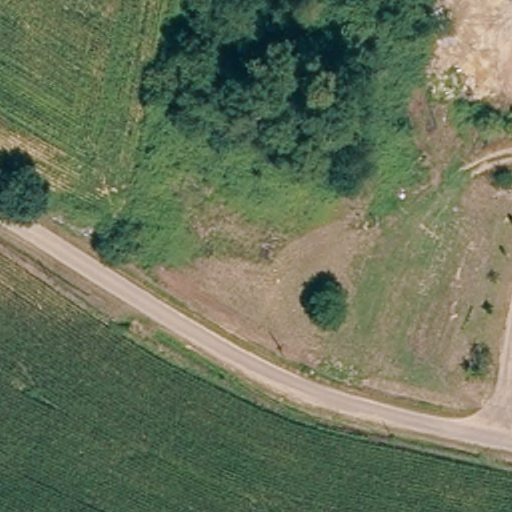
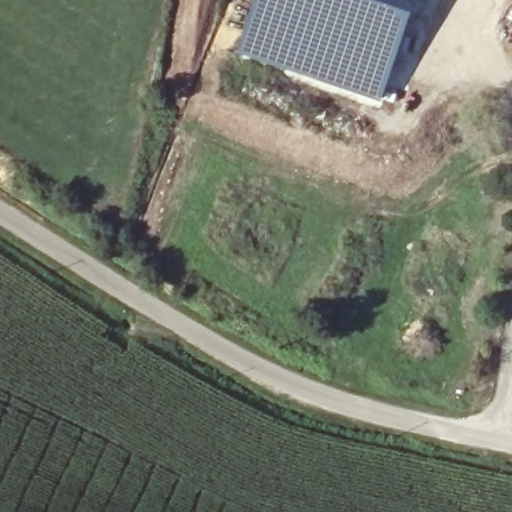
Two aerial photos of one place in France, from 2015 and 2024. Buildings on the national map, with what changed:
new [(250,0),(251,0),(378,0),(413,12),(380,107),(234,55),(250,0)]

